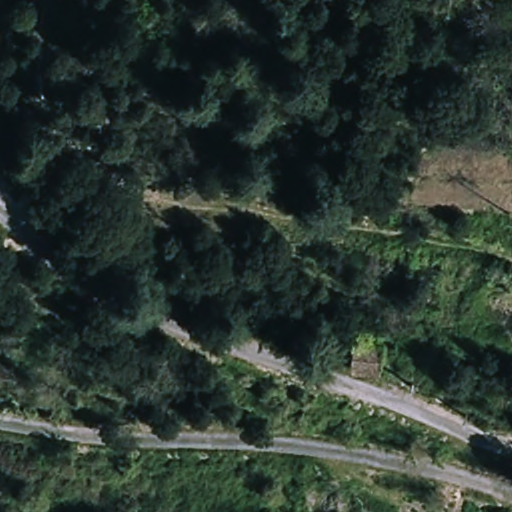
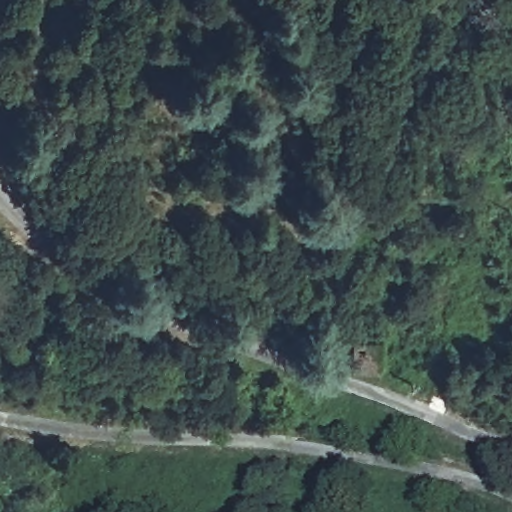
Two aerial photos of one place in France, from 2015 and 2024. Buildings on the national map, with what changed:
unchanged [(360,339),(390,343),(390,370),(356,367),(360,339)]

